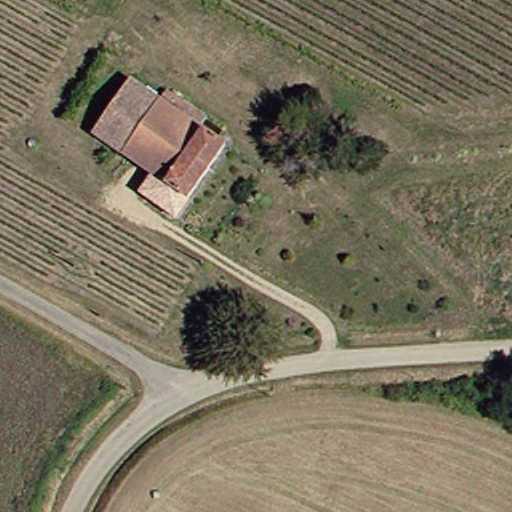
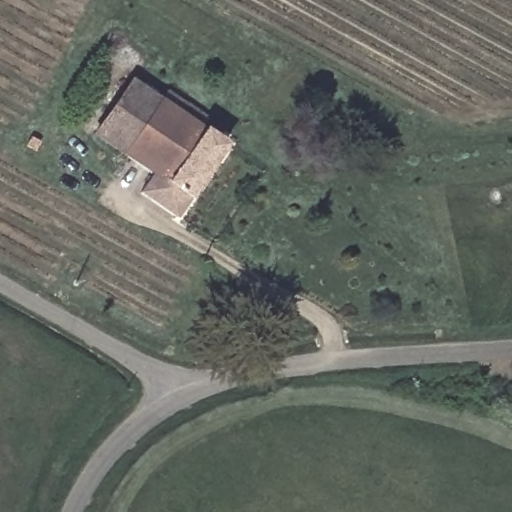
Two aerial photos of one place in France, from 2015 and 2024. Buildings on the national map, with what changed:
unchanged [(169,212),(134,189),(145,171),(90,131),(124,78),(155,99),(162,86),(183,100),(200,111),(191,123),(218,142),(169,212)]

